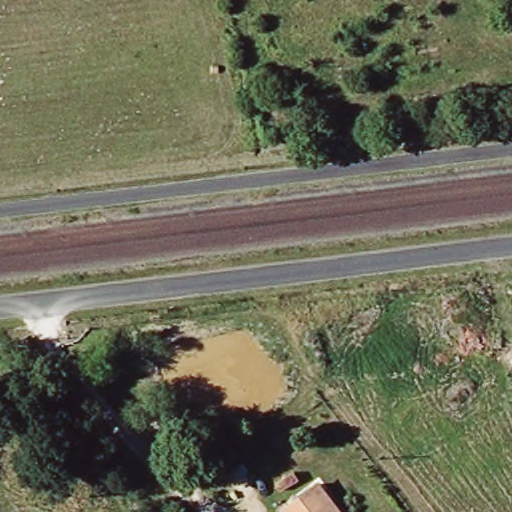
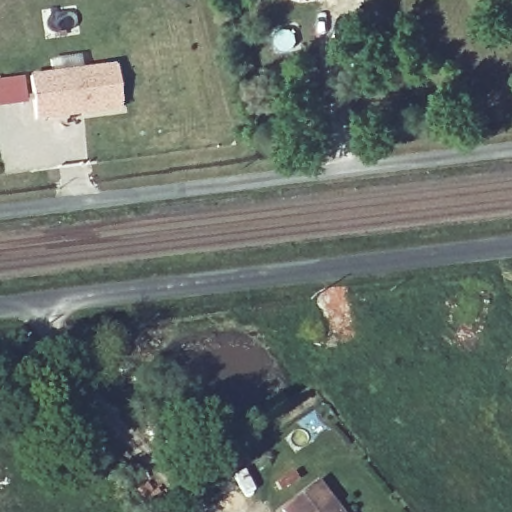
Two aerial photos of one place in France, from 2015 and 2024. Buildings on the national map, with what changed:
new [(122,110),(34,121),(27,75),(115,64),(122,110)]
unchanged [(289,508),(325,483),(346,512),(292,512),(289,508)]

